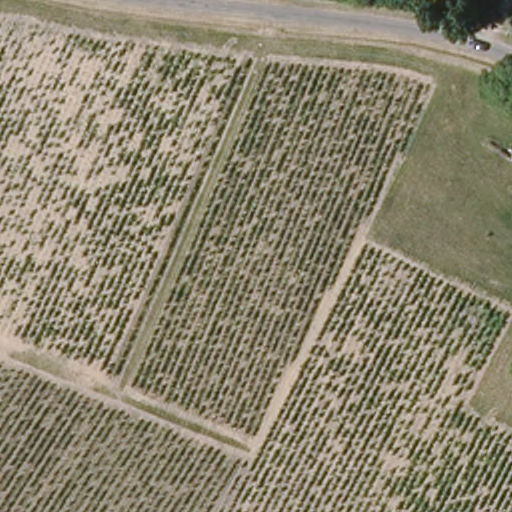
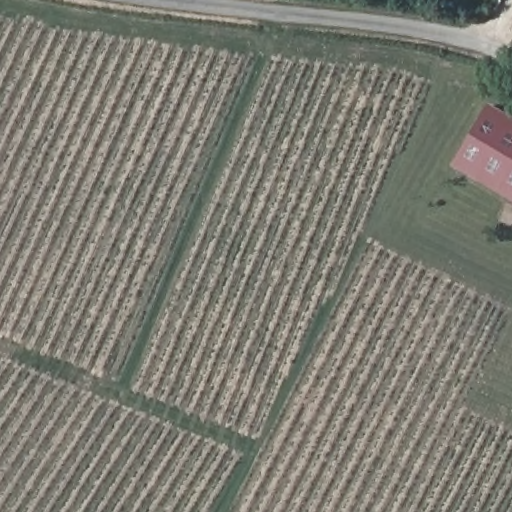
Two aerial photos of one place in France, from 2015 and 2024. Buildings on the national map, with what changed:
new [(452,167),(488,105),(512,118),(512,202),(452,167)]

